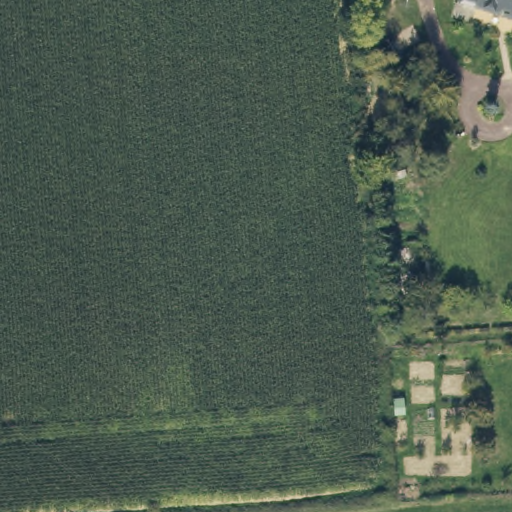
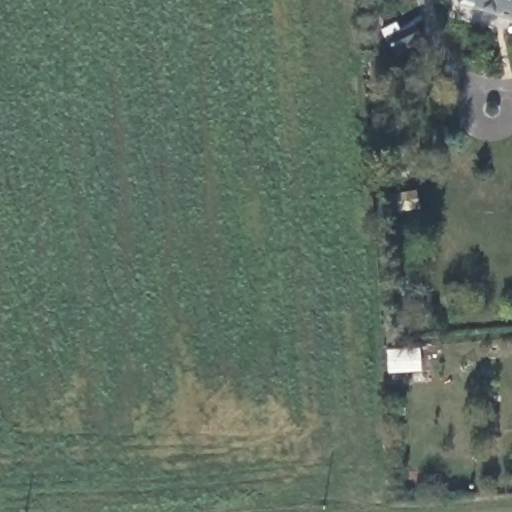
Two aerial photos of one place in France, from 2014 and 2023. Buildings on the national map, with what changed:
unchanged [(462,0),(512,0),(512,20),(465,5),(462,0)]

